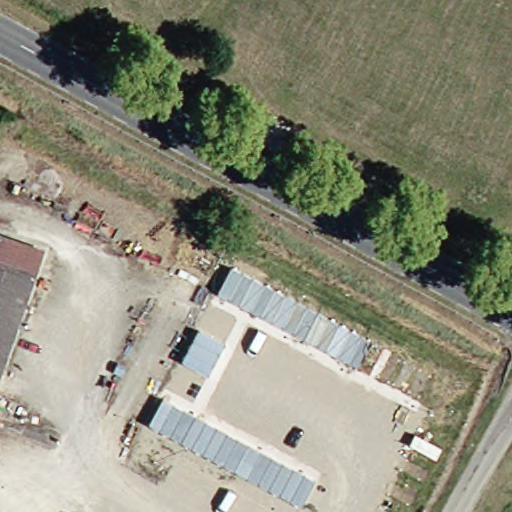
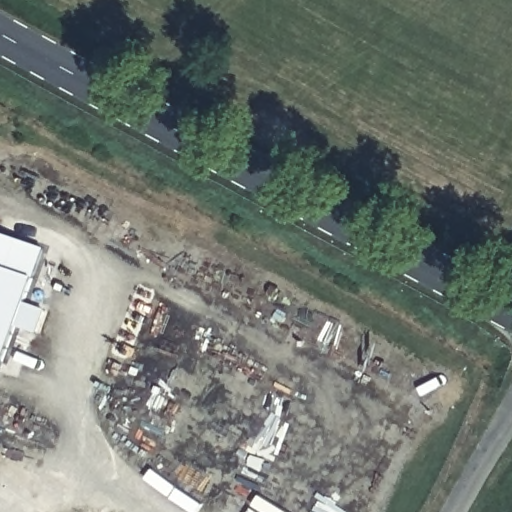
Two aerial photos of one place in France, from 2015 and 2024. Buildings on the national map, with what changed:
unchanged [(0,235),(40,249),(31,277),(0,267),(0,235)]
unchanged [(0,267),(31,277),(0,364),(0,267)]

